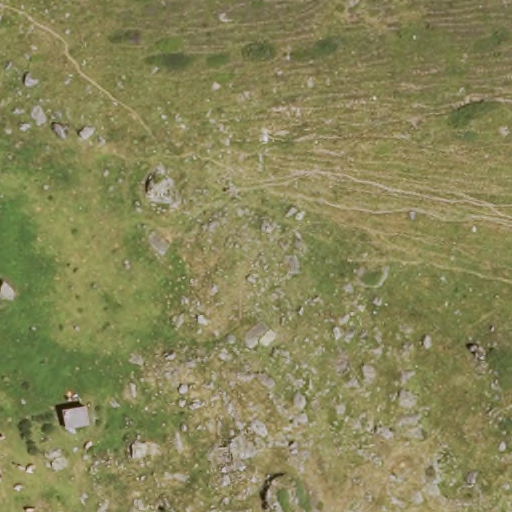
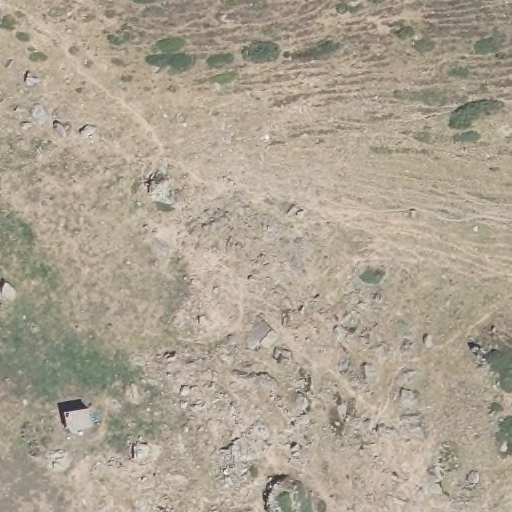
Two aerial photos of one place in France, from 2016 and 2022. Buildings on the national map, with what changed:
unchanged [(76,407),(91,405),(94,428),(65,432),(62,410),(76,407)]

